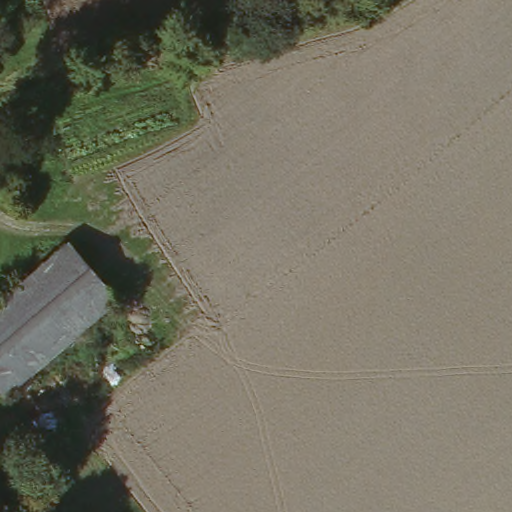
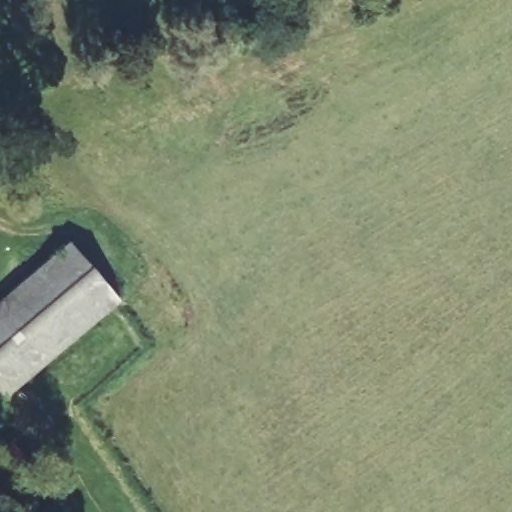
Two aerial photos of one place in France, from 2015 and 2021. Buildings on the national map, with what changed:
unchanged [(122,306),(4,403),(0,399),(0,302),(71,245),(122,306)]
unchanged [(39,508),(33,512),(0,512),(0,471),(13,462),(39,508)]

